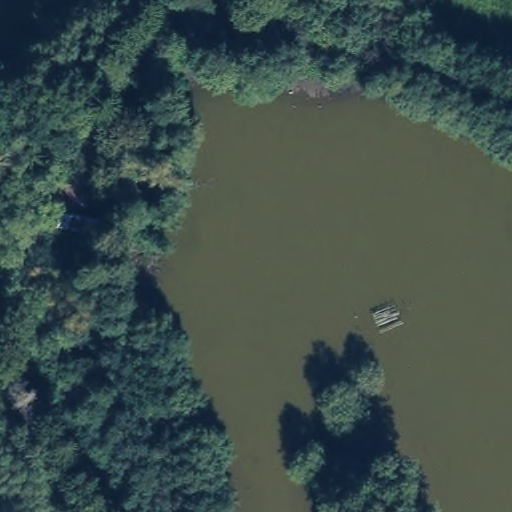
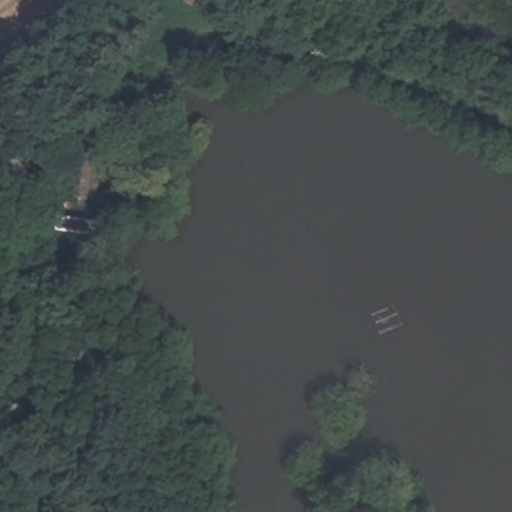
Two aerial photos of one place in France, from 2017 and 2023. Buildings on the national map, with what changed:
unchanged [(107,144),(99,225),(56,222),(65,136),(107,144)]

